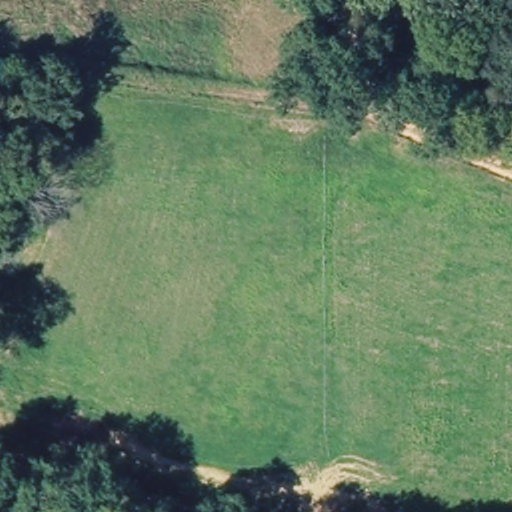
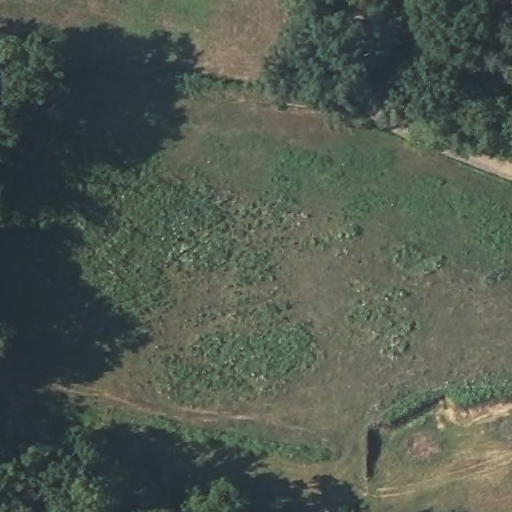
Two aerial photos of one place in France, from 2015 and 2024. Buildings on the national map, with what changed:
unchanged [(118,37),(118,63),(88,60),(90,36),(118,37)]

